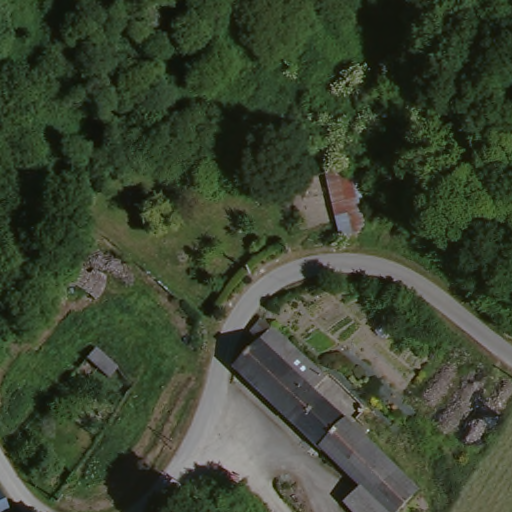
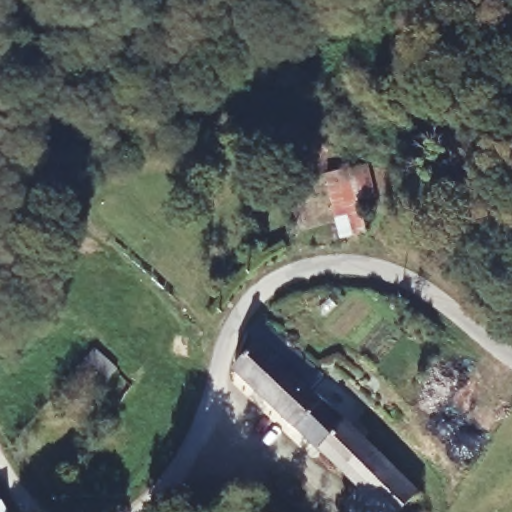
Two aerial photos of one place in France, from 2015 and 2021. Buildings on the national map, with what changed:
unchanged [(268,395),(238,366),(254,329),(268,310),(309,351),(340,382),(325,395),(327,398),(300,427),(268,395)]
unchanged [(329,450),(326,453),(300,427),(327,398),(355,423),(329,450)]
unchanged [(366,486),(329,450),(355,423),(390,457),(392,460),(366,486)]
unchanged [(366,486),(392,460),(423,490),(416,498),(402,512),(359,512),(350,500),(366,486)]
unchanged [(1,483),(14,510),(11,512),(0,512),(0,484),(1,483)]

